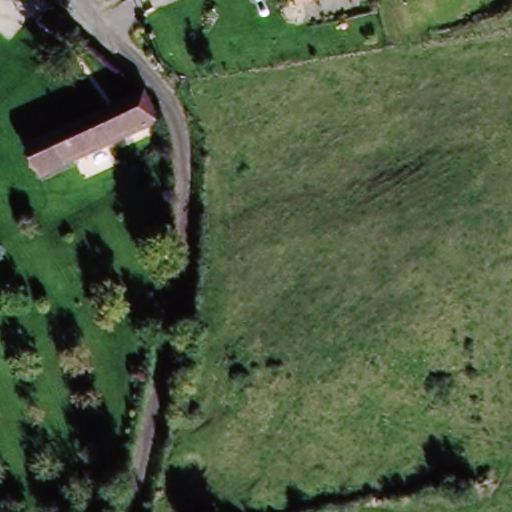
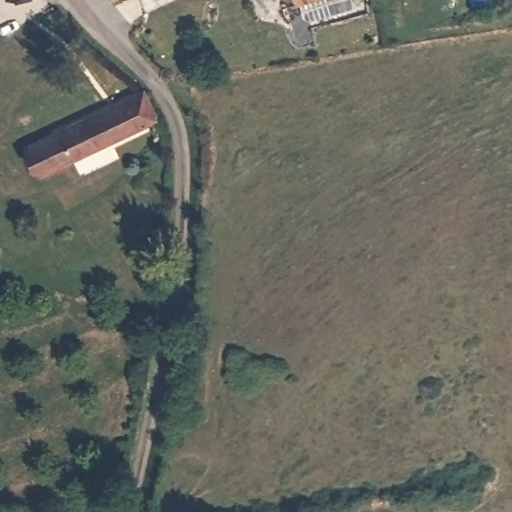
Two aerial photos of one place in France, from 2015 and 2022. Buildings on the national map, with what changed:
unchanged [(1,0),(31,0),(32,2),(1,2),(1,0)]
unchanged [(295,0),(324,0),(297,7),(295,0)]
unchanged [(71,135),(139,110),(150,105),(159,130),(149,135),(40,172),(35,157),(32,149),(71,135)]

